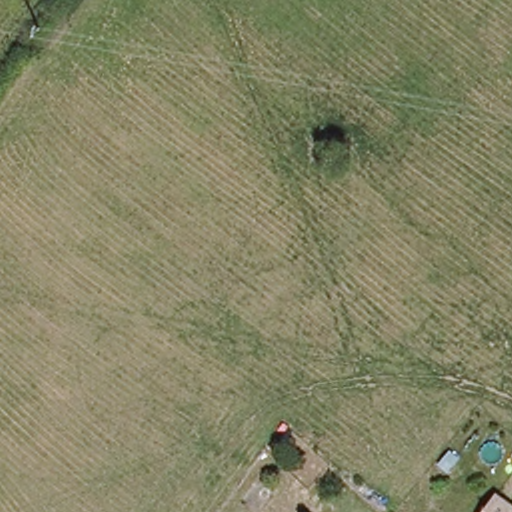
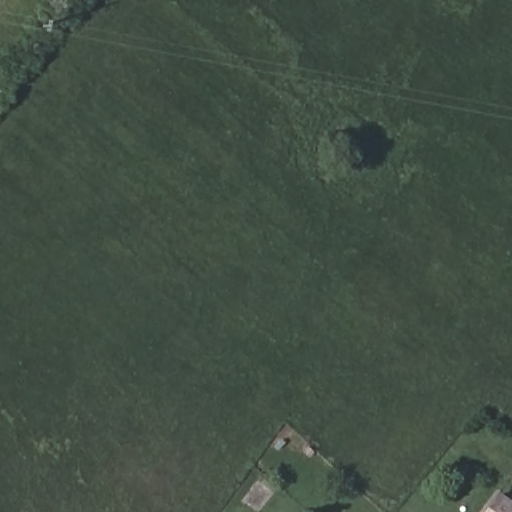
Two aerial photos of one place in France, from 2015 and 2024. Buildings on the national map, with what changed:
unchanged [(512,512),(488,512),(501,487),(512,495),(512,512)]

